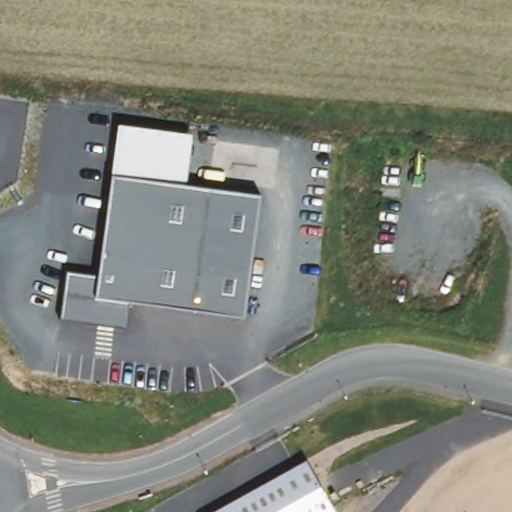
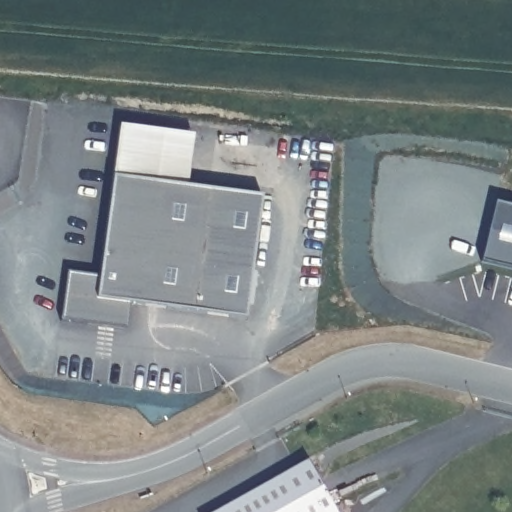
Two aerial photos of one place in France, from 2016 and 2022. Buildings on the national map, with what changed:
unchanged [(119,127),(193,137),(187,188),(261,197),(245,320),(129,304),(126,330),(61,322),(68,274),(99,279),(119,127)]
new [(482,260),(496,203),(512,207),(512,267),(482,260)]
unchanged [(215,512),(307,462),(334,512),(215,512)]

